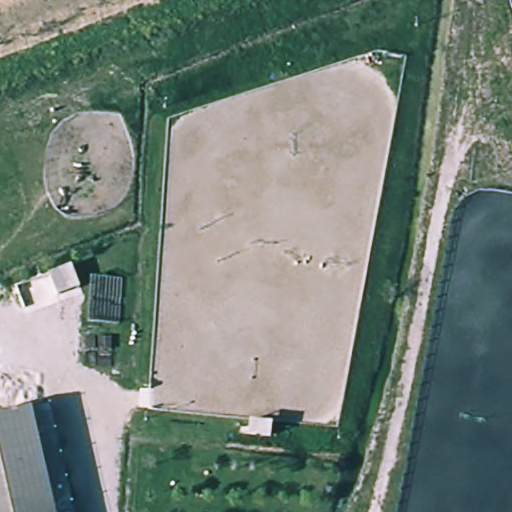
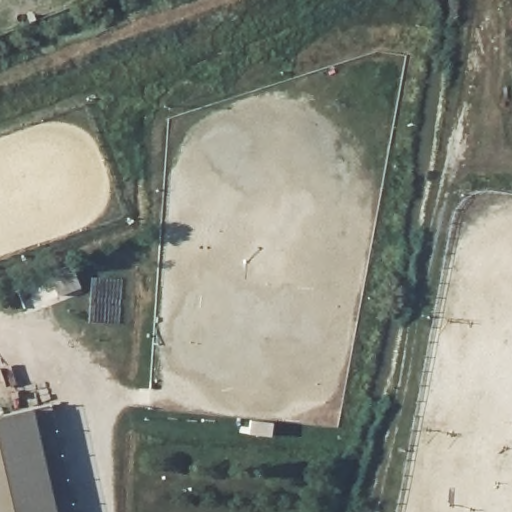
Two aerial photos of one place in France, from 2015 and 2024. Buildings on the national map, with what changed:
unchanged [(60,512),(0,512),(0,412),(37,403),(60,512)]

